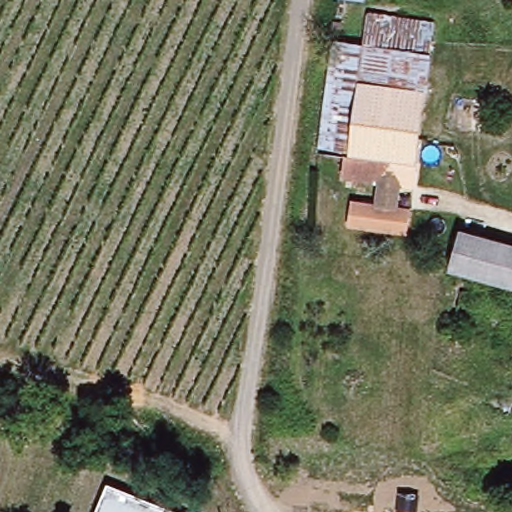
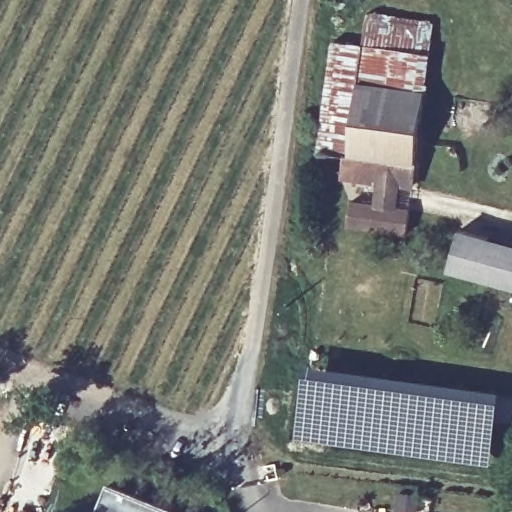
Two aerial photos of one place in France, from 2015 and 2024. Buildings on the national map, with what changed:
unchanged [(354,85),(364,13),(429,22),(419,96),(354,85)]
unchanged [(419,96),(407,190),(394,188),(389,216),(371,213),(375,183),(340,179),(342,158),(318,154),(321,124),(323,109),(351,113),(354,85),(419,96)]
unchanged [(512,283),(451,270),(462,232),(512,243),(512,283)]
new [(303,371),(394,382),(395,378),(426,382),(425,387),(498,397),(490,464),(424,456),(293,438),(303,371)]
unchanged [(178,512),(89,512),(100,483),(178,512)]
new [(394,490),(418,492),(416,512),(392,512),(394,490)]

